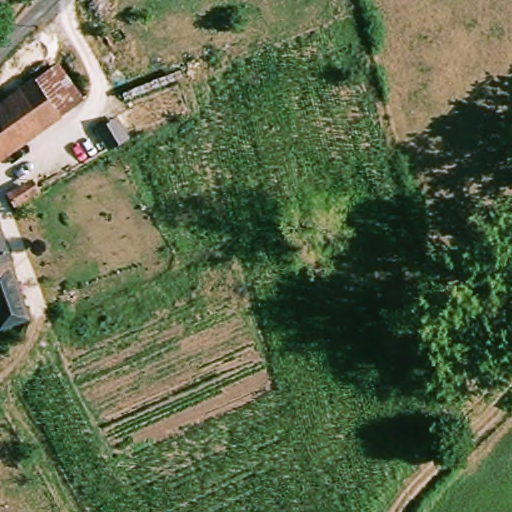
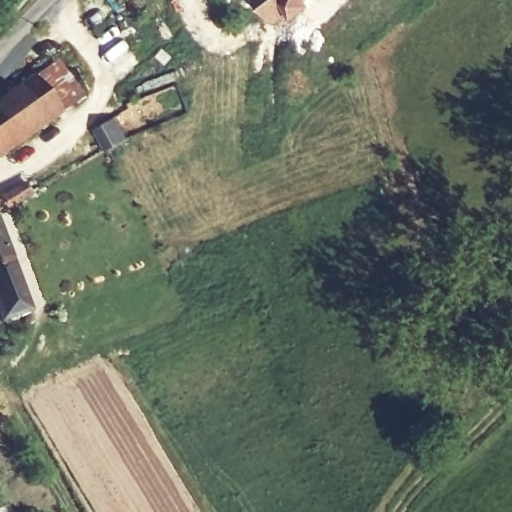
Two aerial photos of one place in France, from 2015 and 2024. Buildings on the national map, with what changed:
new [(316,2),(298,16),(294,12),(278,23),(261,0),(315,0),(316,2)]
unchanged [(30,79),(54,64),(79,102),(58,117),(0,157),(0,100),(30,79)]
unchanged [(0,325),(0,306),(0,236),(31,313),(0,325)]

